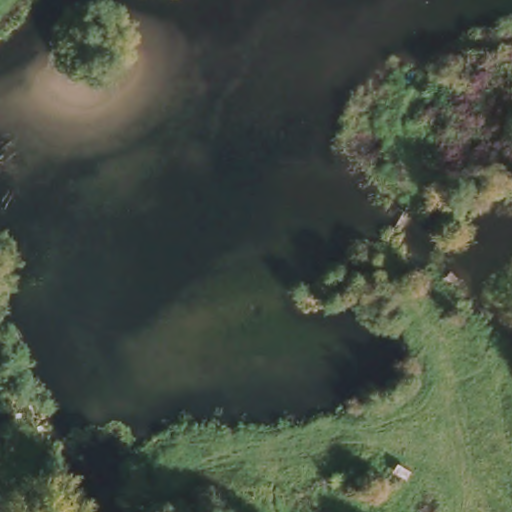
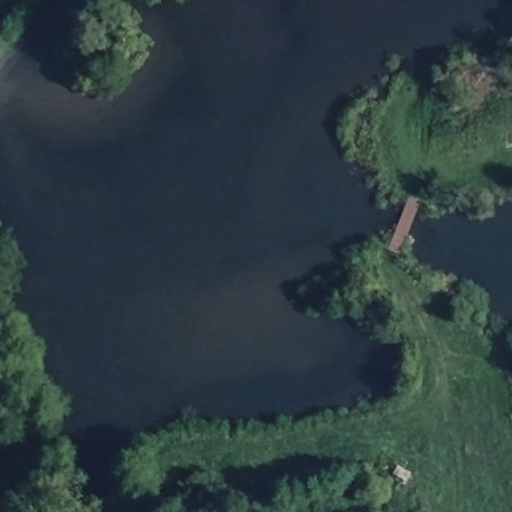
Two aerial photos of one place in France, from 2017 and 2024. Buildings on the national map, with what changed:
unchanged [(446,122),(444,102),(472,96),(475,116),(446,122)]

